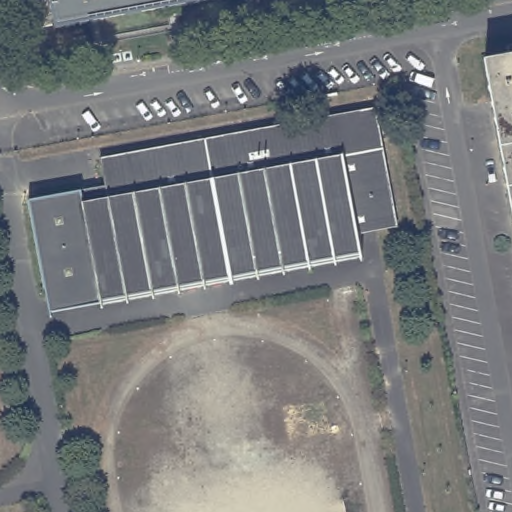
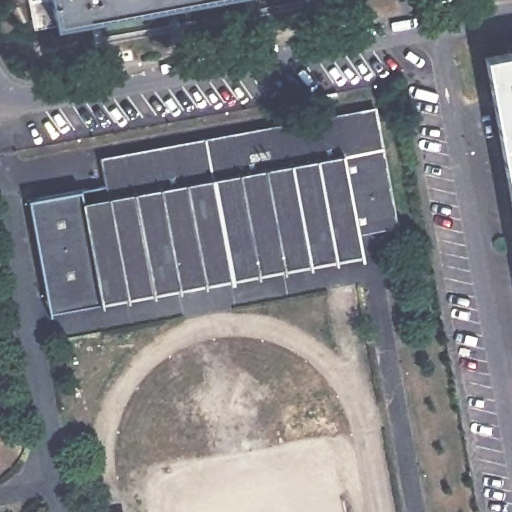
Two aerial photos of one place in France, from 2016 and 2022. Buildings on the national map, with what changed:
unchanged [(44,0),(65,0),(69,24),(49,27),(44,0)]
unchanged [(65,0),(212,0),(69,26),(69,24),(65,0)]
unchanged [(512,55),(512,207),(484,60),(512,55)]
unchanged [(381,110),(403,229),(360,237),(363,256),(104,303),(103,296),(48,315),(28,195),(75,185),(76,196),(111,192),(105,161),(381,110)]

